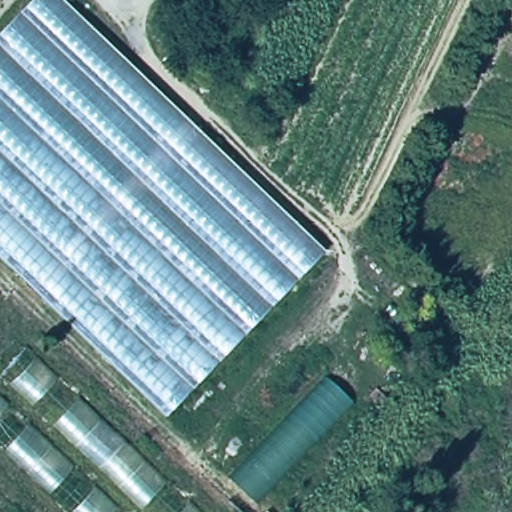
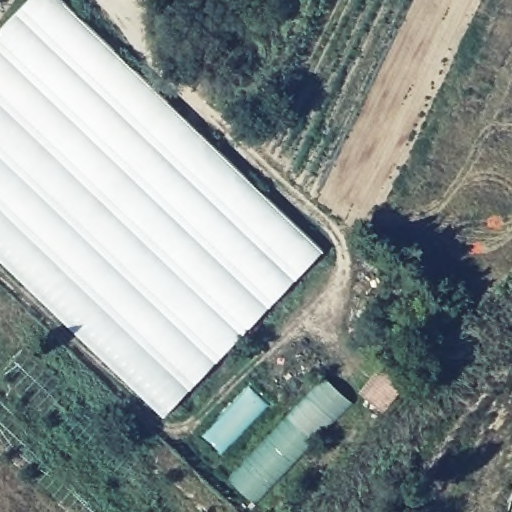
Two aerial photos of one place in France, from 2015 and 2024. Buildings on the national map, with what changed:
unchanged [(165,410),(0,255),(0,31),(31,0),(65,0),(322,250),(165,410)]
new [(390,351),(416,372),(384,412),(358,390),(390,351)]
demolished [(0,447),(0,396),(7,389),(0,381),(0,375),(25,353),(193,512),(68,512),(0,447)]
new [(256,503),(227,476),(325,377),(352,404),(256,503)]

